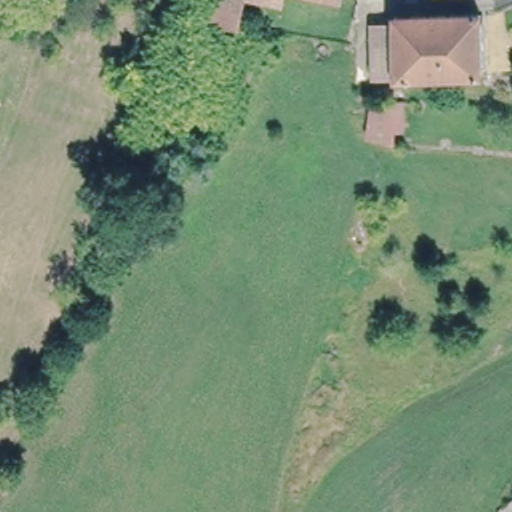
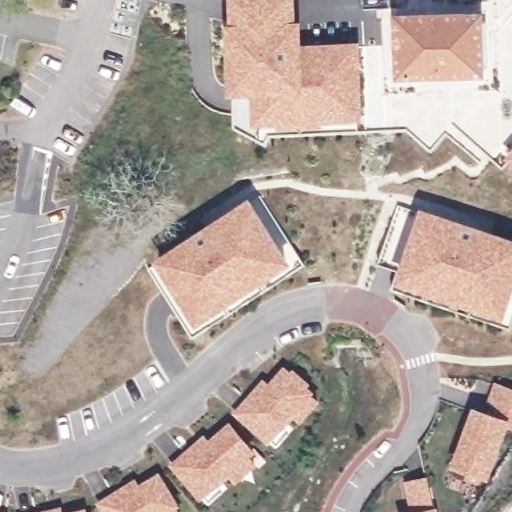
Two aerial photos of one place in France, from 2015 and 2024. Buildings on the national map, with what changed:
new [(324,125),(278,127),(277,122),(254,125),(251,92),(230,94),(226,24),(231,23),(230,0),(296,0),(297,20),(302,20),(302,45),(360,41),(363,119),(325,121),(324,125)]
new [(483,11),(486,74),(397,77),(394,14),(483,11)]
demolished [(479,14),(479,43),(370,48),(370,42),(393,42),(393,18),(479,14)]
demolished [(478,72),(370,78),(370,48),(479,43),(478,72)]
demolished [(394,133),(393,142),(389,142),(368,137),(372,101),(396,102),(394,133)]
new [(512,150),(512,161),(506,156),(512,150)]
new [(304,262),(194,335),(150,267),(157,261),(155,258),(249,196),(252,201),(260,196),(304,262)]
new [(419,213),(421,206),(512,238),(512,320),(509,328),(393,288),(396,280),(400,270),(379,262),(399,204),(419,213)]
new [(269,382),(285,363),(315,385),(312,388),(316,392),(312,396),(319,401),(300,420),(293,415),(268,444),(233,413),(264,377),(269,382)]
new [(508,427),(488,478),(453,465),(474,406),(484,410),(494,382),(512,388),(512,429),(508,427)]
new [(210,438),(230,420),(256,451),(251,456),(257,464),(236,481),(228,474),(200,498),(168,463),(204,433),(210,438)]
new [(139,482),(159,470),(181,505),(177,506),(181,512),(103,512),(96,501),(135,476),(139,482)]
new [(435,507),(437,505),(439,512),(410,512),(411,511),(404,481),(427,475),(435,507)]
new [(64,512),(29,512),(62,504),(64,512)]
new [(86,506),(88,512),(64,512),(86,506)]
new [(0,511),(9,512),(0,512),(0,511)]

